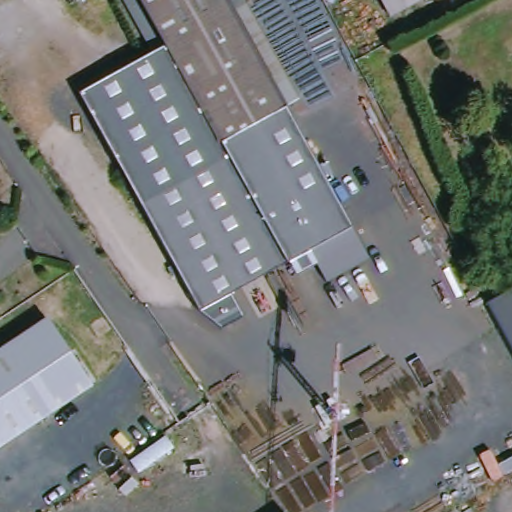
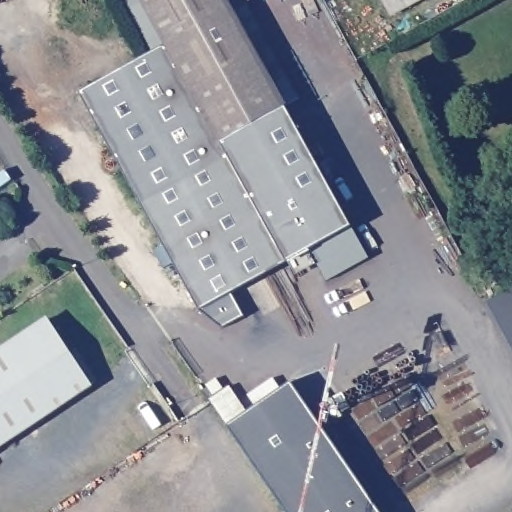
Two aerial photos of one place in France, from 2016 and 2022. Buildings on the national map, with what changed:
unchanged [(233,294),(244,319),(223,330),(201,312),(82,95),(154,55),(125,0),(248,0),(301,102),(288,110),(351,229),(369,260),(328,285),(319,269),(299,279),(289,266),(233,294)]
unchanged [(394,17),(387,0),(429,0),(394,17)]
unchanged [(512,291),(512,349),(487,303),(512,291)]
unchanged [(0,447),(0,351),(50,317),(95,384),(0,447)]
new [(208,401),(229,387),(248,414),(290,384),(378,512),(284,512),(228,427),(208,401)]

